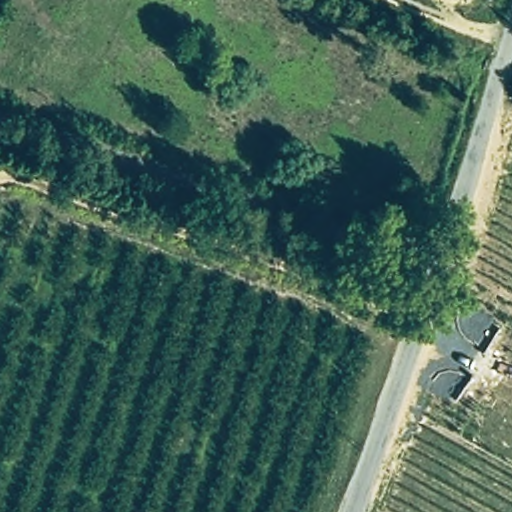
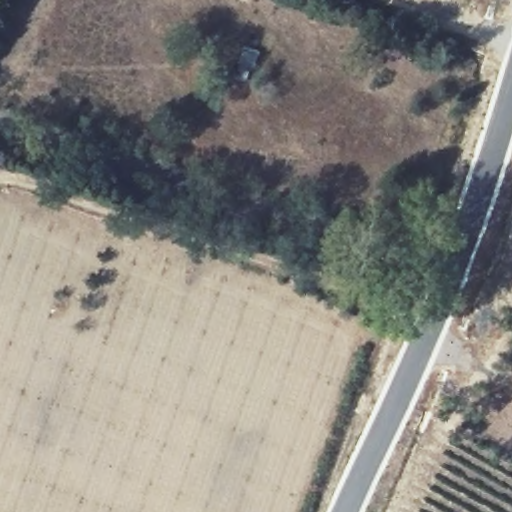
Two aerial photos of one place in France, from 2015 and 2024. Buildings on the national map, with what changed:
[]

